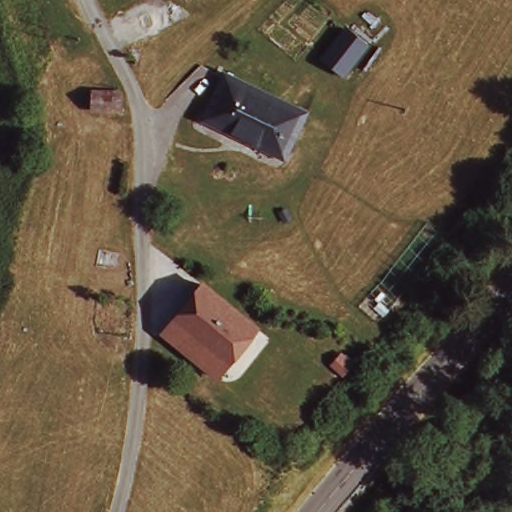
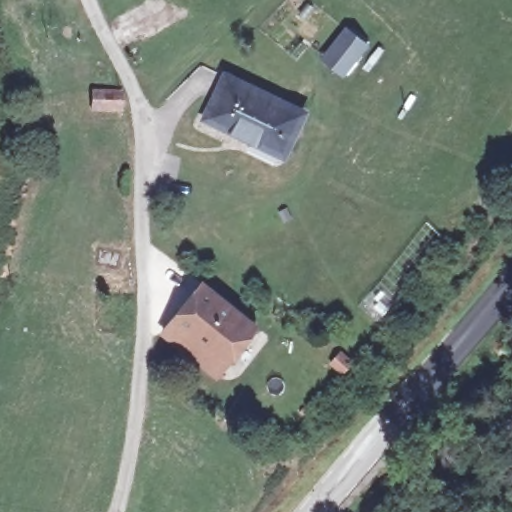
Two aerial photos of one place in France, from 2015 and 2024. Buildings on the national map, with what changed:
unchanged [(366,45),(344,73),(324,57),(346,28),(366,45)]
unchanged [(218,71),(295,108),(273,151),(198,111),(218,71)]
unchanged [(90,92),(119,94),(118,112),(89,111),(90,92)]
unchanged [(118,254),(116,269),(91,264),(95,249),(118,254)]
unchanged [(204,277),(258,321),(230,355),(176,312),(204,277)]
unchanged [(230,355),(219,368),(166,325),(176,312),(230,355)]

